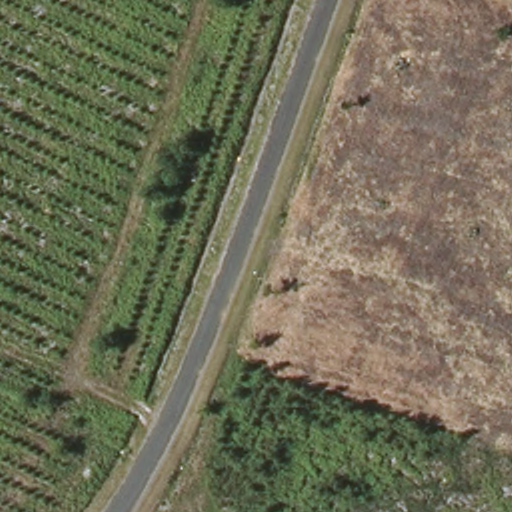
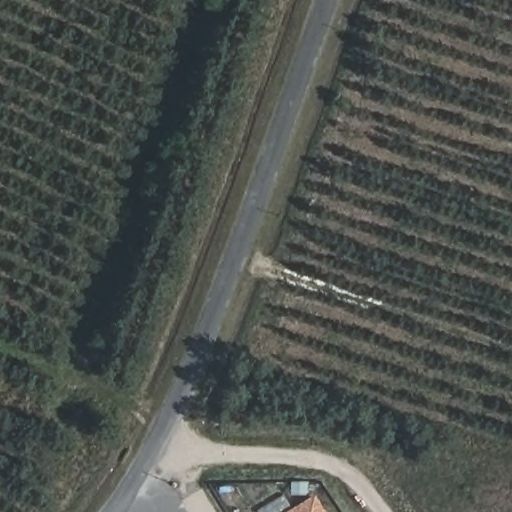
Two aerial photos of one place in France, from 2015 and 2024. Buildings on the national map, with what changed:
new [(291,512),(317,496),(327,512),(291,512)]

